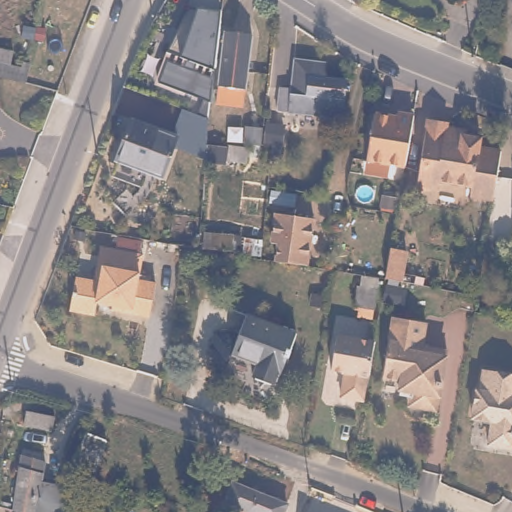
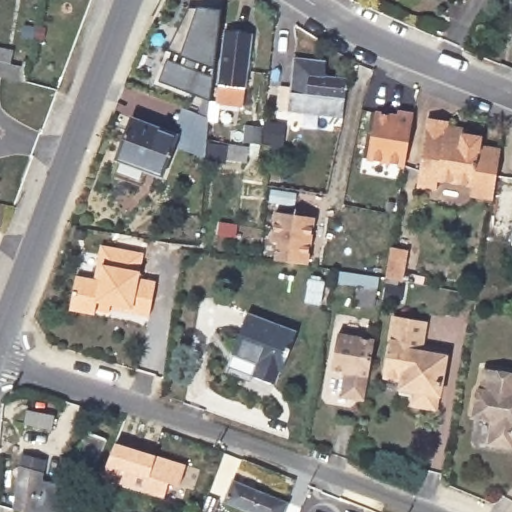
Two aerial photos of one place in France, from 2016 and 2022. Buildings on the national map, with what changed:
unchanged [(216,78),(214,97),(206,159),(172,146),(175,136),(172,135),(184,109),(199,115),(203,98),(159,83),(170,61),(173,53),(169,51),(189,8),(198,8),(222,11),(222,23),(216,78)]
unchanged [(243,100),(214,97),(216,78),(222,23),(248,26),(244,81),(243,100)]
unchanged [(11,64),(22,67),(24,61),(31,63),(27,83),(0,77),(0,49),(14,51),(11,64)]
unchanged [(280,89),(282,90),(297,91),(301,66),(332,68),(332,84),(352,86),(347,122),(281,115),(277,114),(280,89)]
unchanged [(411,116),(402,166),(365,159),(372,112),(395,115),(395,111),(411,113),(411,116)]
unchanged [(486,199),(465,196),(466,186),(432,181),(430,190),(411,187),(422,118),(441,120),(439,130),(473,137),(473,146),(494,149),(486,199)]
unchanged [(175,136),(161,175),(115,157),(130,119),(175,136)]
unchanged [(270,122),(275,123),(273,141),(268,141),(257,140),(258,121),(270,122)]
unchanged [(240,161),(224,160),(225,145),(229,145),(230,129),(241,130),(246,131),(244,147),(242,161),(240,161)]
unchanged [(302,192),(300,205),(274,202),(276,189),(302,192)]
unchanged [(505,244),(508,227),(512,202),(512,245),(505,244)]
unchanged [(303,264),(282,261),(281,261),(283,242),(276,241),(280,212),(318,218),(312,265),(303,264)]
unchanged [(234,232),(231,249),(204,245),(206,228),(234,232)]
unchanged [(99,314),(75,309),(82,276),(100,280),(102,265),(106,245),(129,250),(147,253),(144,279),(160,282),(154,316),(127,311),(128,307),(122,305),(102,302),(99,314)]
unchanged [(405,253),(401,281),(400,281),(384,278),(388,250),(405,253)]
unchanged [(375,281),(371,310),(353,308),(357,288),(360,288),(361,279),(375,281)]
unchanged [(279,368),(274,381),(253,372),(258,359),(234,349),(249,309),(287,325),(297,329),(282,368),(281,368),(279,368)]
unchanged [(419,324),(415,346),(438,352),(431,395),(430,396),(428,405),(423,409),(406,406),(402,400),(404,391),(392,389),(394,381),(377,378),(387,318),(419,324)]
unchanged [(337,397),(340,374),(326,372),(332,337),(369,342),(365,374),(363,383),(359,401),(337,397)]
unchanged [(481,409),(484,389),(486,388),(489,372),(490,368),(503,370),(512,372),(512,446),(496,443),(500,419),(480,416),(481,409)]
unchanged [(53,415),(50,428),(24,424),(26,410),(53,415)]
unchanged [(101,444),(88,476),(67,468),(80,436),(101,444)]
new [(116,445),(185,464),(179,484),(168,481),(164,498),(101,480),(116,445)]
unchanged [(17,457),(39,462),(30,512),(8,512),(17,457)]
unchanged [(286,501),(281,512),(260,512),(224,495),(232,476),(286,501)]

